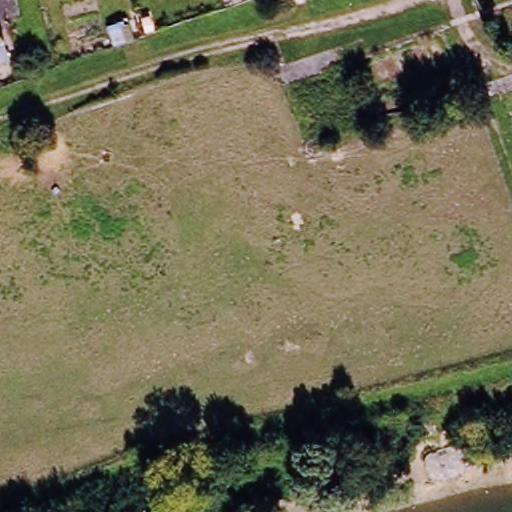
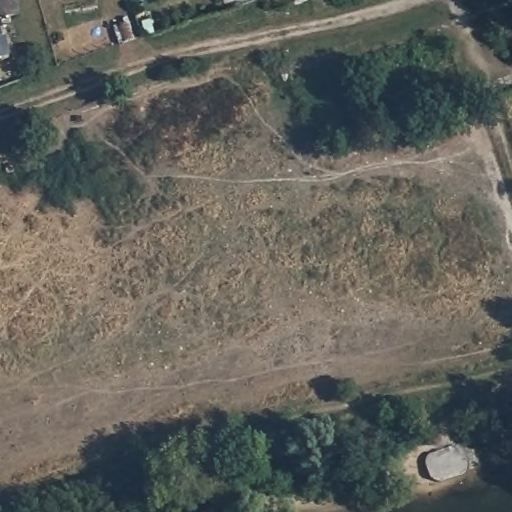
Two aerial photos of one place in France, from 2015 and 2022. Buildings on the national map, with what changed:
unchanged [(14,0),(17,15),(2,19),(0,19),(0,0),(14,0)]
unchanged [(104,26),(122,20),(127,34),(109,40),(104,26)]
unchanged [(0,60),(0,50),(3,59),(0,60)]

